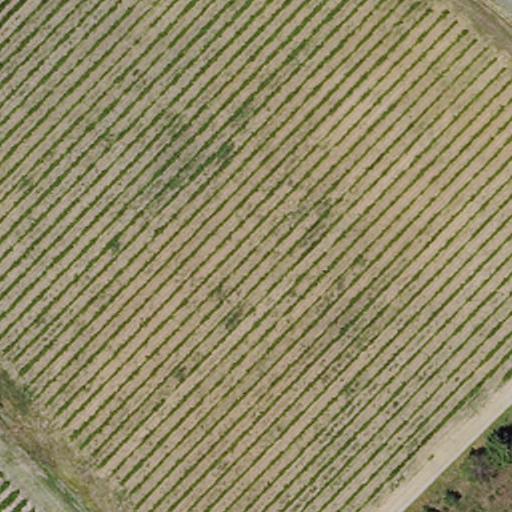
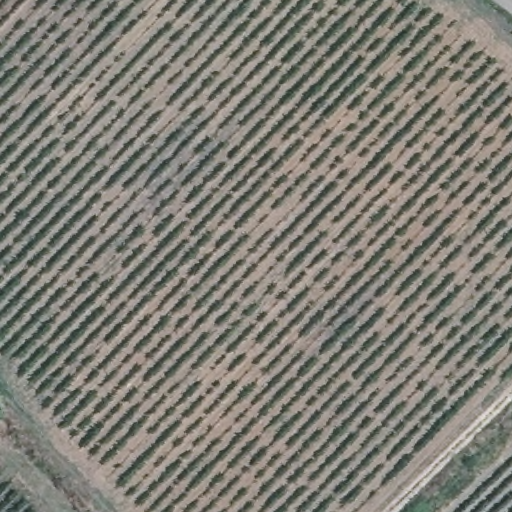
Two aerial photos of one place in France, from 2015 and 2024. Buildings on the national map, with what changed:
[]

